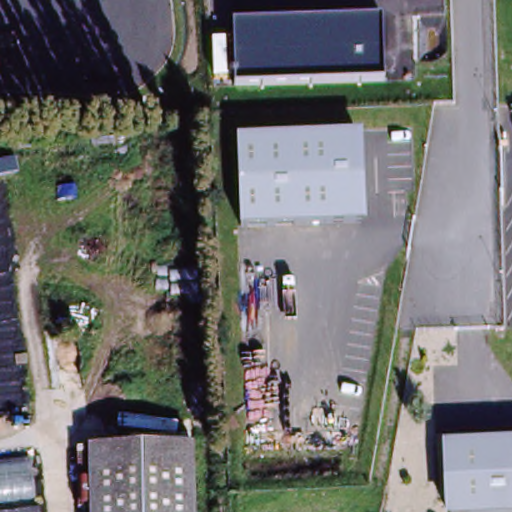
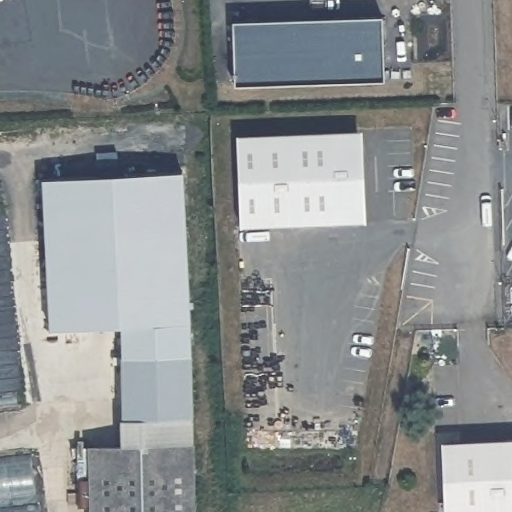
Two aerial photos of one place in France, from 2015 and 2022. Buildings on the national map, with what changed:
unchanged [(383,83),(235,89),(233,24),(380,19),(383,83)]
unchanged [(363,130),(367,227),(240,231),(235,137),(363,130)]
new [(186,171),(194,437),(120,437),(120,418),(124,419),(120,329),(50,334),(41,182),(186,171)]
unchanged [(194,437),(194,512),(103,512),(104,437),(194,437)]
unchanged [(512,512),(443,512),(440,444),(512,441),(512,512)]
unchanged [(0,512),(0,459),(33,458),(38,512),(0,512)]

